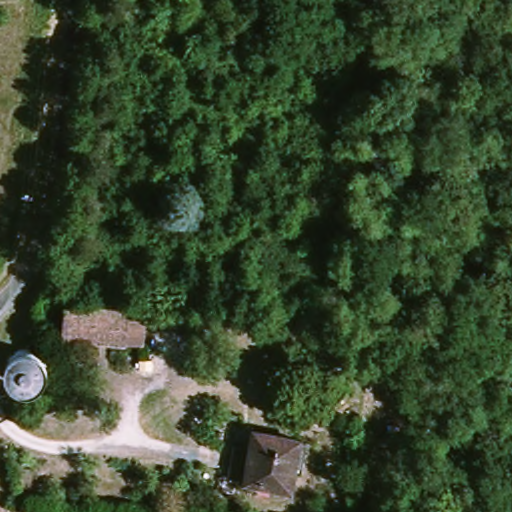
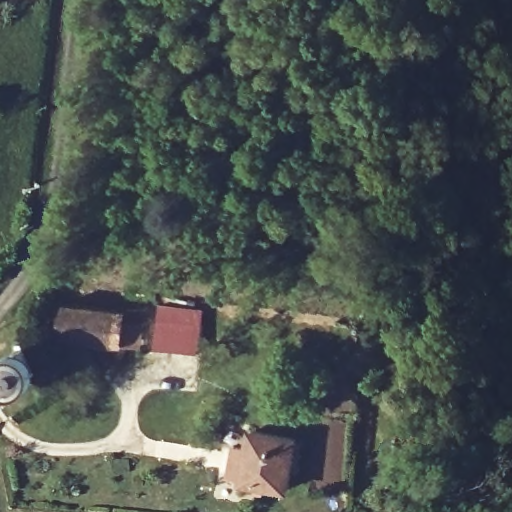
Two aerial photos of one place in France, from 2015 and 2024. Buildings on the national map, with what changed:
new [(159,302),(205,307),(200,352),(154,348),(159,302)]
unchanged [(130,312),(128,346),(61,341),(64,307),(130,312)]
unchanged [(301,438),(299,467),(293,467),(291,487),(261,486),(261,491),(245,490),(248,435),(301,438)]

